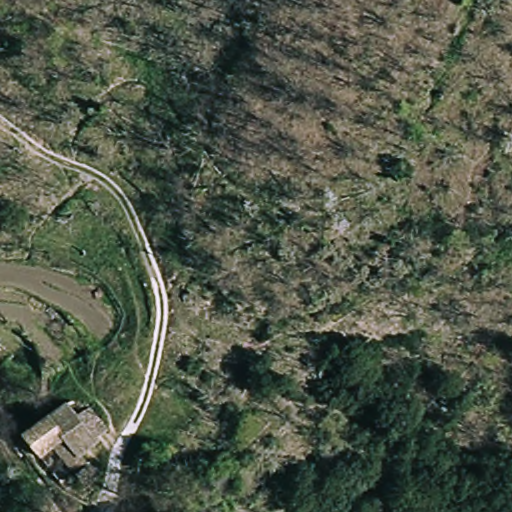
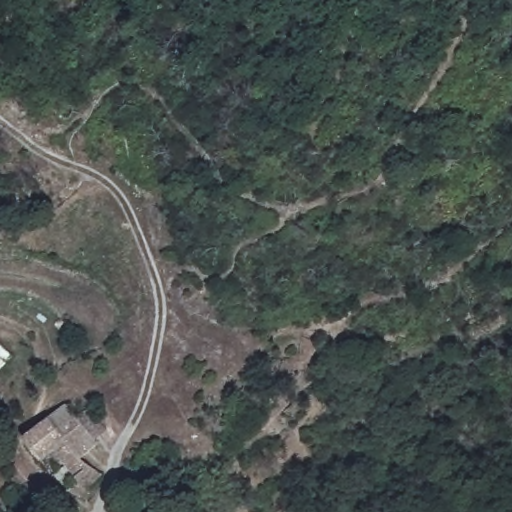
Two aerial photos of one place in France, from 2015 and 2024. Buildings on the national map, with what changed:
unchanged [(101,472),(88,485),(79,476),(48,450),(40,460),(20,443),(57,405),(92,440),(77,457),(88,466),(92,462),(101,472)]

